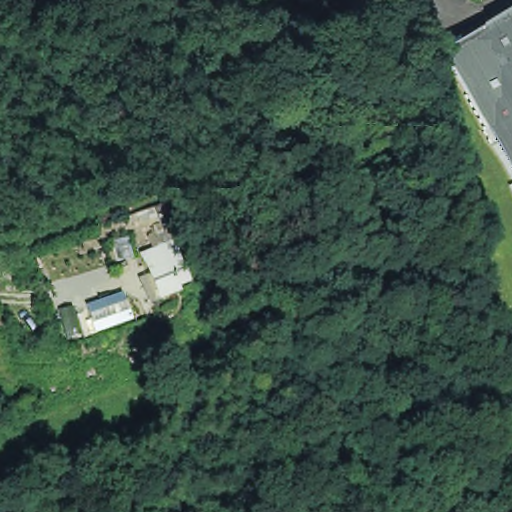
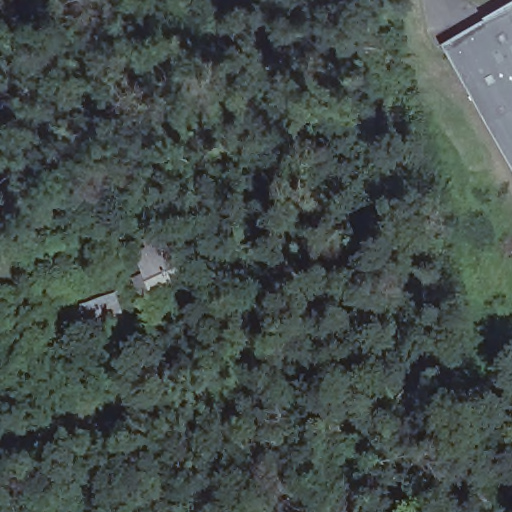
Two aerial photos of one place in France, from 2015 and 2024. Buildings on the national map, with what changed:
unchanged [(512,166),(445,48),(512,9),(512,166)]
unchanged [(173,296),(163,300),(162,294),(157,296),(143,263),(167,254),(176,278),(170,280),(171,284),(169,285),(173,296)]

